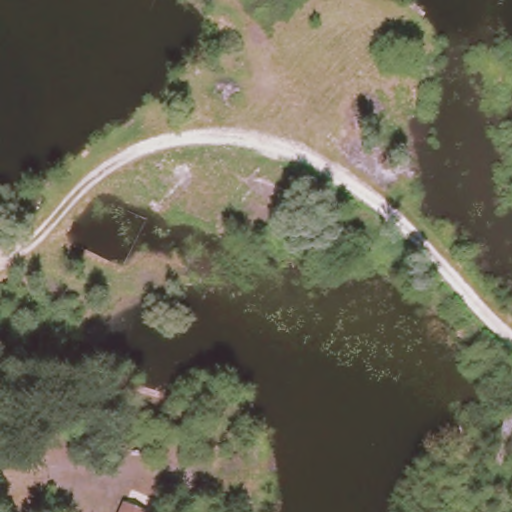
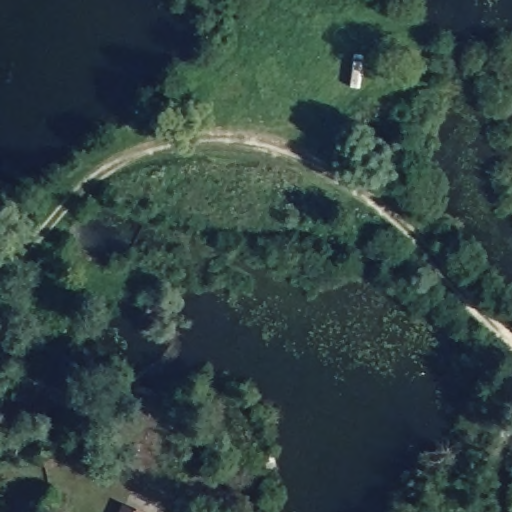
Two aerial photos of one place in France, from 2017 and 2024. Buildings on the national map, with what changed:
unchanged [(121,507),(136,512),(119,512),(121,507)]

